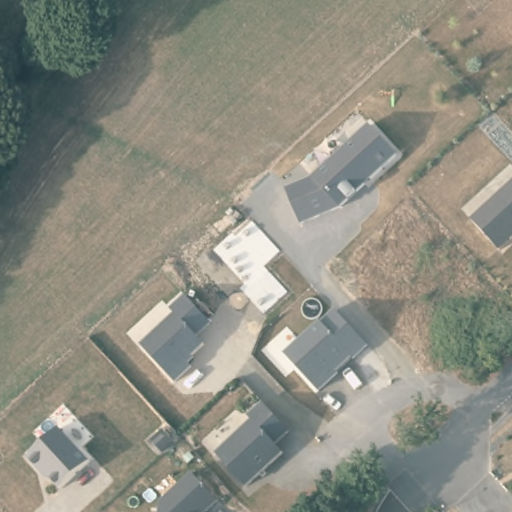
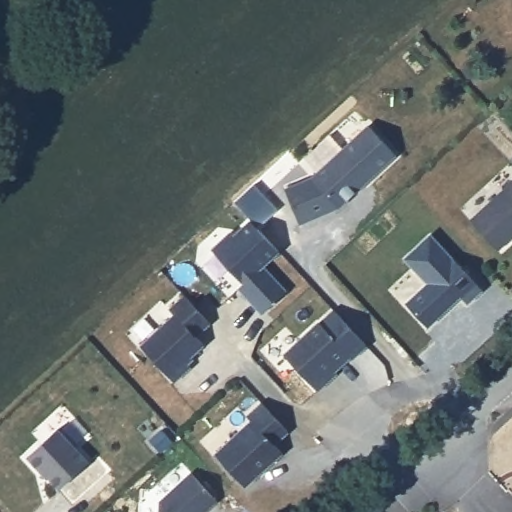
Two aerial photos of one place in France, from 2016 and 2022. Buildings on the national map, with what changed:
unchanged [(397,157),(344,206),(300,223),(286,188),(312,177),(366,126),(397,157)]
unchanged [(498,249),(470,219),(512,179),(512,236),(498,249)]
unchanged [(229,228),(233,233),(249,218),(281,252),(264,267),(285,290),(259,313),(238,288),(242,284),(210,247),(229,228)]
new [(431,233),(483,291),(468,305),(462,298),(429,327),(406,302),(426,284),(404,259),(431,233)]
unchanged [(195,334),(203,343),(185,360),(190,365),(173,380),(140,345),(174,314),(170,308),(184,295),(209,321),(195,334)]
unchanged [(352,362),(348,358),(336,369),(336,378),(318,392),(284,354),(336,309),(368,346),(352,362)]
unchanged [(287,435),(274,448),(281,457),(245,490),(215,458),(251,425),(247,420),(261,407),(287,435)]
unchanged [(39,469),(26,455),(56,427),(88,461),(59,487),(47,475),(41,468),(39,469)]
unchanged [(206,512),(157,512),(157,503),(190,472),(217,502),(206,512)]

